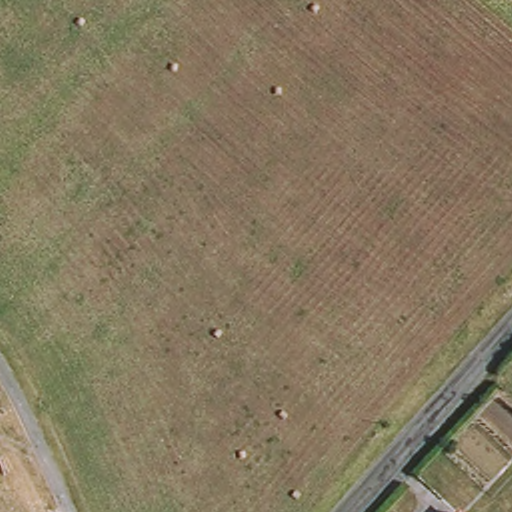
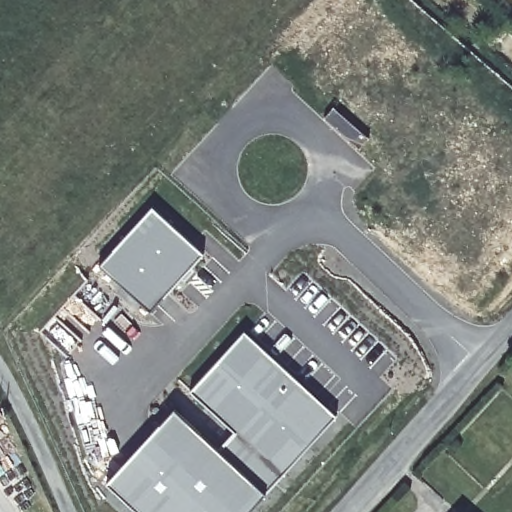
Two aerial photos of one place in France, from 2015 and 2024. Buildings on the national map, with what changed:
new [(152,208),(203,255),(150,314),(98,267),(152,208)]
new [(174,409),(218,449),(234,432),(190,392),(244,332),(337,415),(249,512),(136,512),(106,484),(174,409)]

